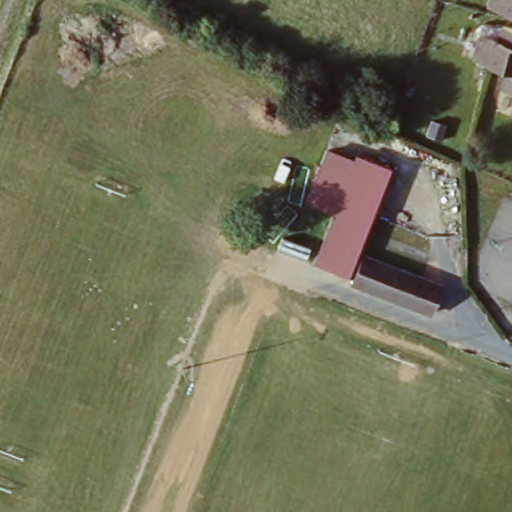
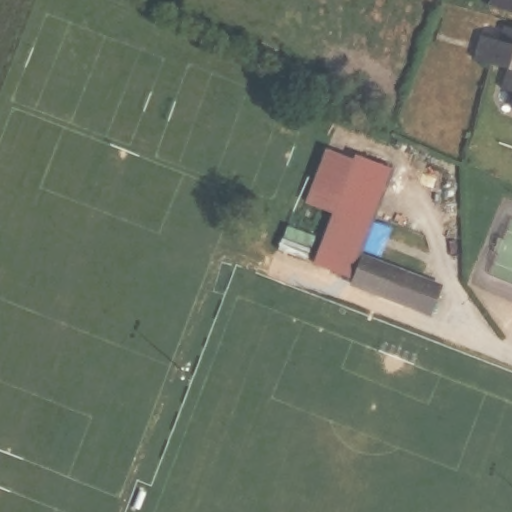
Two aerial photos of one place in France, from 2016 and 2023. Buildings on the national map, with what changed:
unchanged [(512,15),(490,8),(492,0),(512,0),(512,15)]
unchanged [(501,31),(512,35),(512,100),(495,95),(501,73),(470,64),(477,42),(496,47),(501,31)]
unchanged [(512,100),(512,115),(507,114),(512,100)]
unchanged [(334,217),(306,205),(325,157),(353,169),(356,161),(388,175),(348,281),(315,267),(334,217)]
unchanged [(350,286),(361,262),(441,292),(431,318),(403,308),(377,297),(350,286)]

